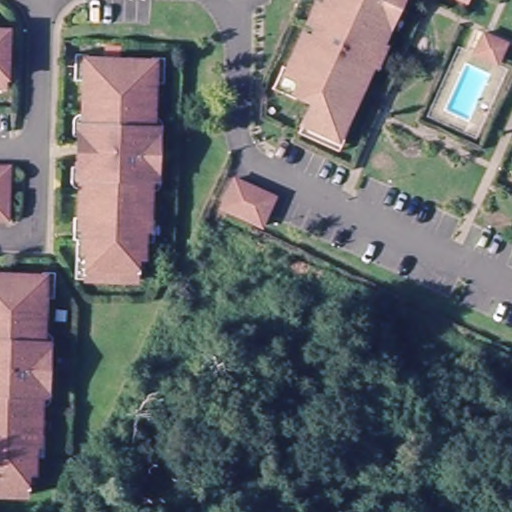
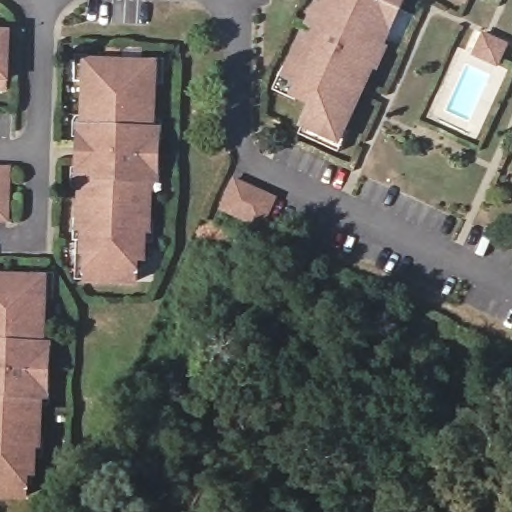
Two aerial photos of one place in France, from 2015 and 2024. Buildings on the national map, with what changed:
unchanged [(298,130),(302,122),(312,99),(297,93),(295,97),(273,87),(283,64),(287,66),(302,33),(301,32),(315,1),(321,5),(324,0),(404,0),(395,20),(391,18),(380,44),(383,46),(378,59),(375,57),(344,126),(349,128),(340,149),(298,130)]
unchanged [(6,35),(5,83),(0,83),(0,34),(6,35)]
unchanged [(496,69),(485,63),(475,59),(484,39),(493,43),(506,49),(496,69)]
unchanged [(112,63),(112,68),(131,69),(131,64),(157,65),(155,131),(161,131),(160,185),(154,185),(152,235),(148,235),(147,263),(142,263),(142,284),(92,283),(92,261),(87,261),(88,233),(83,233),(85,181),(79,181),(80,127),(86,128),(87,63),(112,63)]
unchanged [(9,171),(8,221),(0,221),(0,171),(9,171)]
unchanged [(276,202),(262,231),(222,213),(236,184),(276,202)]
unchanged [(19,282),(19,278),(44,278),(42,344),(48,345),(46,399),(41,398),(40,449),(35,449),(34,477),(30,477),(29,498),(0,497),(0,282),(19,282)]

